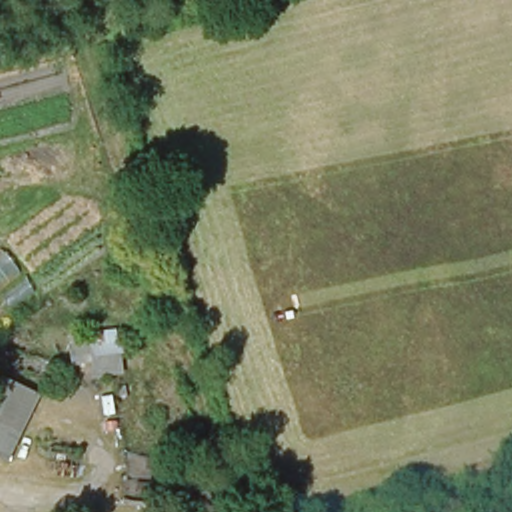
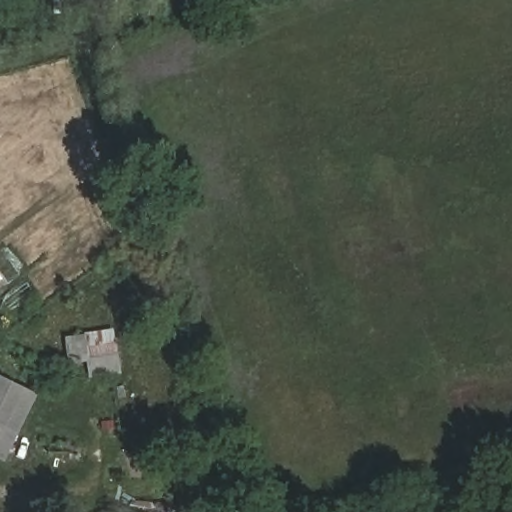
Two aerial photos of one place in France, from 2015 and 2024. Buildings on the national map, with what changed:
unchanged [(113,327),(116,354),(69,359),(66,332),(113,327)]
unchanged [(39,390),(9,451),(0,447),(0,379),(3,373),(39,390)]

